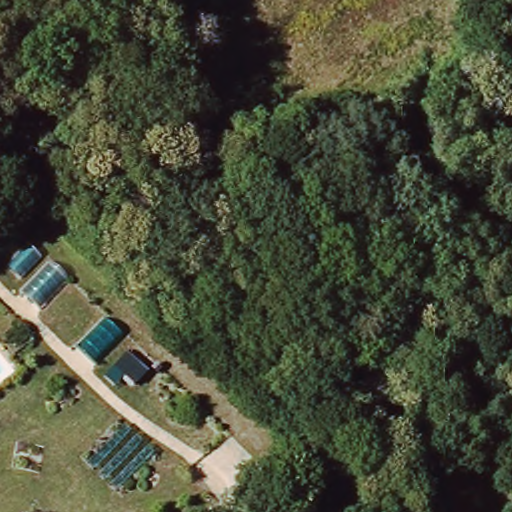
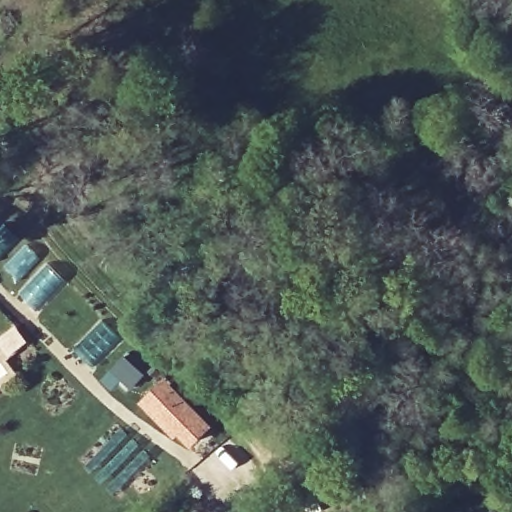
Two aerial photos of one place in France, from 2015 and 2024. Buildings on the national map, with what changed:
unchanged [(21,293),(26,287),(5,266),(29,242),(67,277),(39,308),(21,293)]
unchanged [(75,346),(102,317),(121,338),(95,366),(75,346)]
unchanged [(111,369),(126,353),(147,372),(134,389),(111,369)]
new [(190,444),(176,430),(173,433),(144,401),(167,379),(175,386),(210,425),(190,444)]

